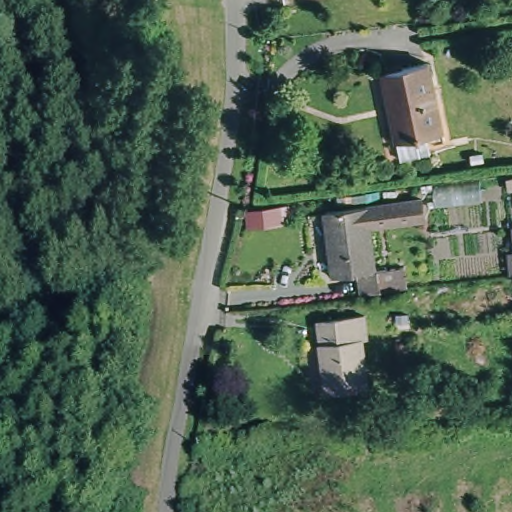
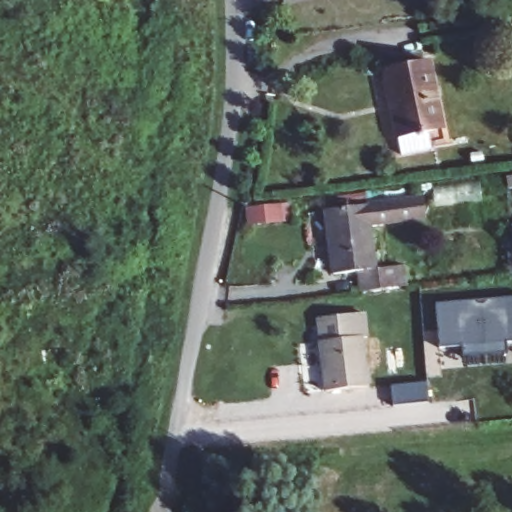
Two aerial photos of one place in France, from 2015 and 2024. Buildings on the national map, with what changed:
unchanged [(397,155),(379,70),(423,60),(442,146),(397,155)]
unchanged [(400,265),(403,286),(358,291),(355,272),(332,276),(320,211),(364,204),(417,197),(420,218),(367,225),(375,269),(400,265)]
unchanged [(512,278),(511,278),(509,261),(512,261),(512,278)]
new [(507,351),(465,354),(464,346),(439,348),(437,304),(512,299),(512,342),(507,342),(507,351)]
unchanged [(357,340),(367,390),(325,398),(315,347),(317,347),(314,324),(358,317),(362,339),(357,340)]

